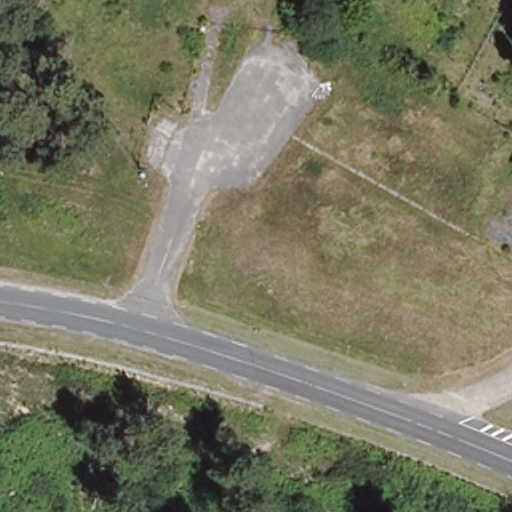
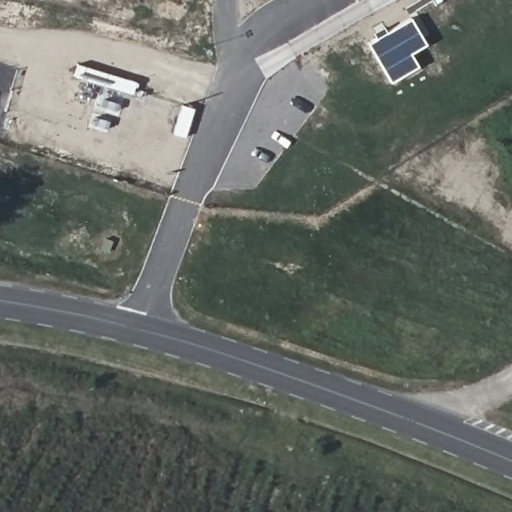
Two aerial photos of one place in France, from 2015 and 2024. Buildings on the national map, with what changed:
new [(426,44),(411,54),(419,66),(392,84),(369,42),(411,18),(426,44)]
demolished [(504,165),(512,153),(512,170),(504,165)]

